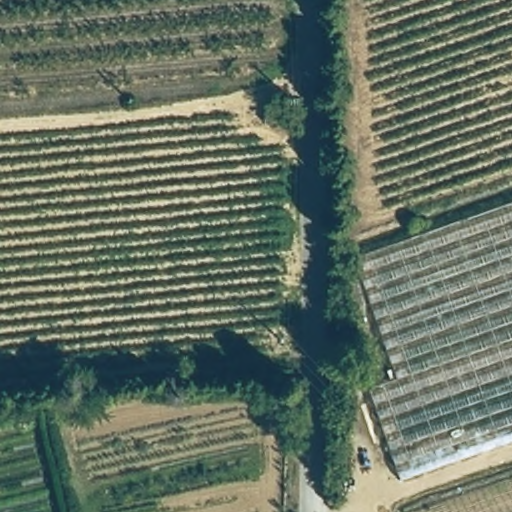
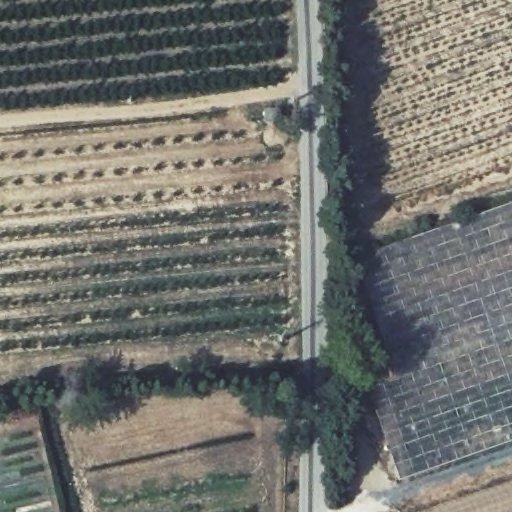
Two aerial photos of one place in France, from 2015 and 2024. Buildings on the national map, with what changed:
unchanged [(512,207),(512,443),(402,482),(369,393),(395,381),(355,262),(512,207)]

